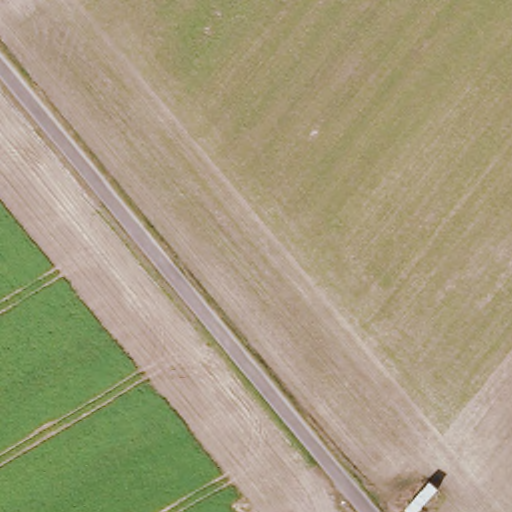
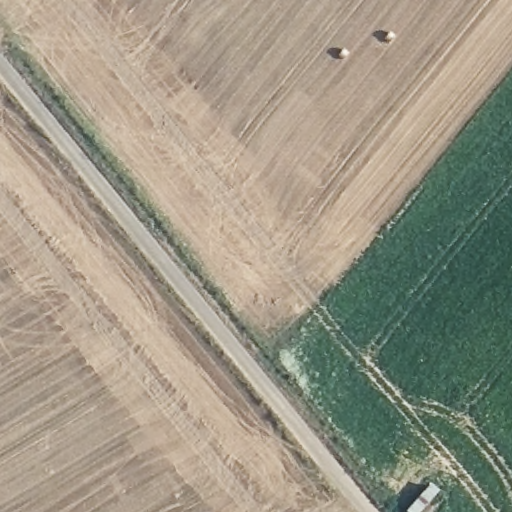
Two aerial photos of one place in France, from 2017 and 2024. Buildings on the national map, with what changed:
unchanged [(436,492),(417,512),(401,512),(400,511),(425,482),(436,492)]

